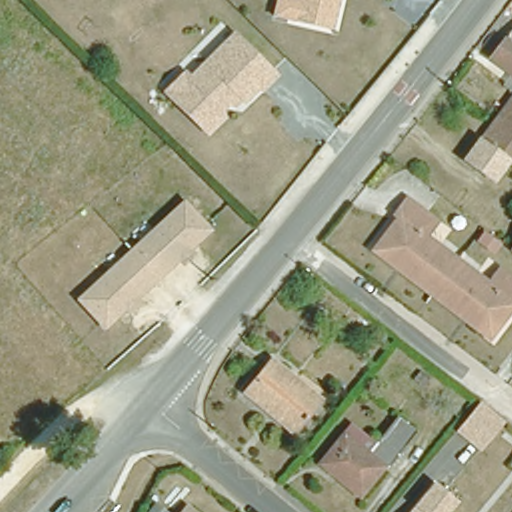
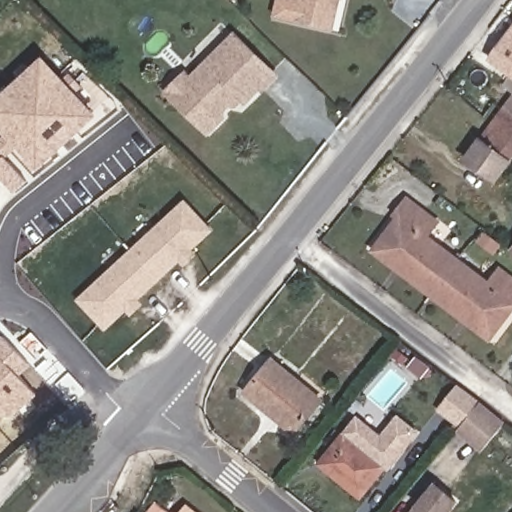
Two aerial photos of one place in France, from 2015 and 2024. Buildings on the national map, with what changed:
unchanged [(325,23),(292,16),(269,11),(271,0),(331,0),(325,23)]
unchanged [(492,50),(512,21),(512,66),(492,50)]
unchanged [(180,70),(189,80),(233,35),(274,76),(260,90),(259,87),(244,102),(233,92),(227,97),(229,103),(203,129),(173,100),(161,89),(180,70)]
new [(64,78),(70,73),(84,87),(77,93),(98,115),(36,170),(18,148),(7,158),(28,181),(14,192),(0,176),(0,139),(5,134),(0,129),(0,95),(44,55),(64,78)]
unchanged [(506,102),(512,93),(512,106),(506,102)]
unchanged [(499,171),(474,154),(506,102),(512,106),(512,152),(499,171)]
unchanged [(449,265),(430,289),(401,266),(404,261),(377,240),(397,212),(395,208),(405,195),(434,217),(424,230),(456,256),(449,265)]
unchanged [(107,332),(78,301),(185,199),(215,233),(107,332)]
unchanged [(487,279),(497,267),(512,278),(512,302),(511,301),(489,328),(463,307),(459,311),(430,289),(449,265),(456,256),(487,279)]
new [(32,366),(20,376),(38,395),(14,417),(9,411),(0,421),(0,338),(4,335),(32,366)]
unchanged [(318,396),(292,429),(242,389),(267,357),(318,396)]
unchanged [(477,453),(454,434),(478,404),(501,422),(477,453)]
unchanged [(415,425),(387,460),(382,460),(359,490),(318,456),(343,426),(349,418),(374,439),(396,408),(415,425)]
unchanged [(448,497),(435,512),(400,512),(427,479),(448,497)]

